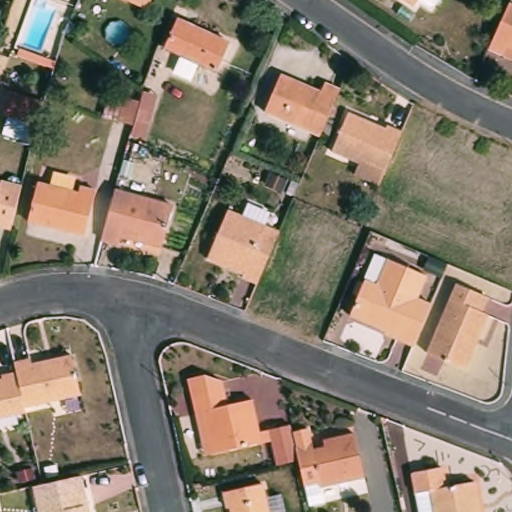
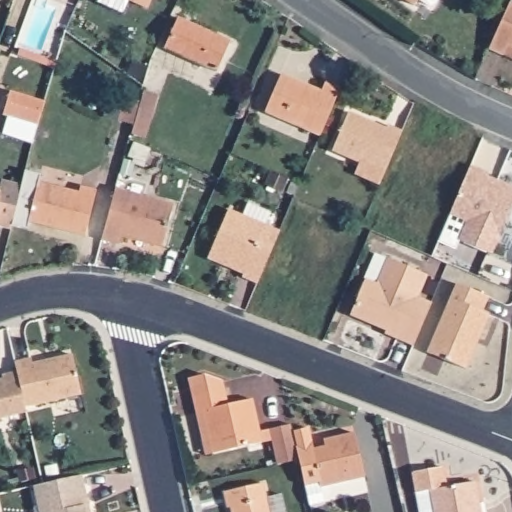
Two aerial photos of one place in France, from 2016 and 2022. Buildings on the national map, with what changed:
unchanged [(121,0),(152,0),(147,11),(121,0)]
unchanged [(407,0),(421,0),(417,6),(407,0)]
unchanged [(506,56),(503,65),(488,59),(507,15),(508,11),(512,12),(512,59),(506,56)]
unchanged [(177,20),(230,42),(216,70),(165,47),(177,20)]
unchanged [(265,112),(281,75),(320,91),(323,81),(340,88),(319,135),(265,112)]
unchanged [(46,101),(36,143),(2,132),(11,90),(46,101)]
unchanged [(119,120),(126,95),(139,99),(132,124),(119,120)]
unchanged [(405,135),(390,169),(363,157),(362,160),(332,148),(349,110),(391,128),(392,125),(407,130),(405,135)]
new [(492,255),(460,240),(466,222),(448,214),(471,165),(489,172),(487,176),(512,187),(512,205),(502,230),(492,255)]
unchanged [(4,180),(23,185),(11,228),(0,226),(0,191),(1,191),(4,180)]
unchanged [(40,185),(80,194),(81,187),(97,191),(86,234),(31,221),(40,185)]
unchanged [(172,205),(161,246),(122,235),(121,241),(102,236),(115,189),(172,205)]
unchanged [(247,277),(250,270),(230,262),(227,267),(211,260),(232,212),(283,234),(262,284),(247,277)]
unchanged [(431,276),(422,298),(435,304),(417,346),(397,338),(398,335),(354,316),(363,294),(369,281),(381,285),(391,260),(431,276)]
unchanged [(431,352),(460,283),(492,296),(486,311),(492,315),(471,368),(431,352)]
unchanged [(32,358),(33,363),(72,355),(80,395),(25,406),(17,371),(15,362),(32,358)]
unchanged [(0,380),(2,379),(2,375),(17,371),(25,406),(26,411),(0,418),(0,380)]
unchanged [(206,412),(198,414),(194,397),(227,389),(232,406),(255,400),(265,441),(216,453),(206,412)]
unchanged [(298,463),(277,467),(270,433),(291,428),(292,435),(308,431),(313,452),(340,446),(337,440),(356,435),(365,477),(321,488),(323,503),(308,506),(305,492),(298,463)]
unchanged [(413,476),(443,470),(447,490),(477,485),(482,507),(478,508),(479,512),(420,512),(413,476)]
unchanged [(29,497),(27,486),(42,483),(44,493),(29,497)]
unchanged [(232,508),(228,510),(224,493),(265,484),(271,512),(232,512),(232,508)]
unchanged [(45,501),(52,500),(92,491),(95,506),(96,512),(47,512),(45,501)]

